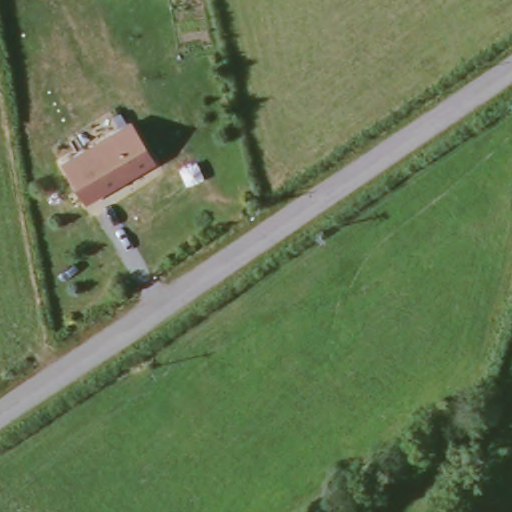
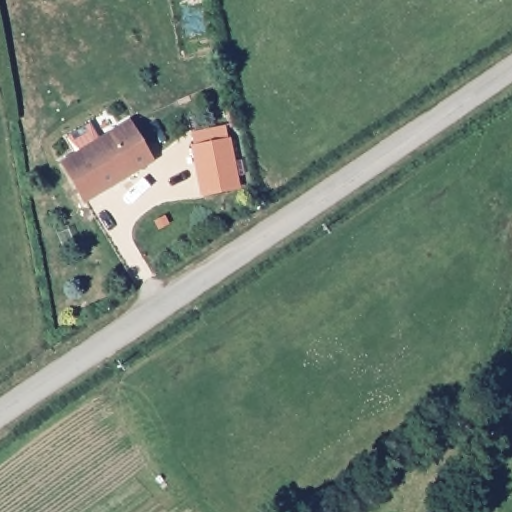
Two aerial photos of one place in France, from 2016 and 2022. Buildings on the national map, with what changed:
unchanged [(134,120),(157,158),(136,171),(133,166),(118,176),(121,180),(87,200),(65,162),(134,120)]
new [(192,145),(194,145),(191,131),(225,126),(228,139),(231,137),(241,189),(201,197),(192,145)]

